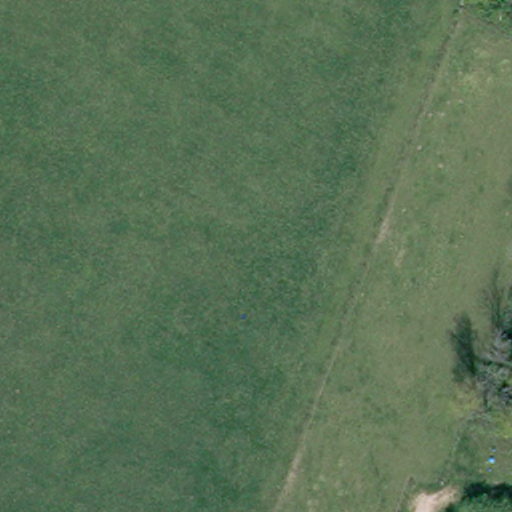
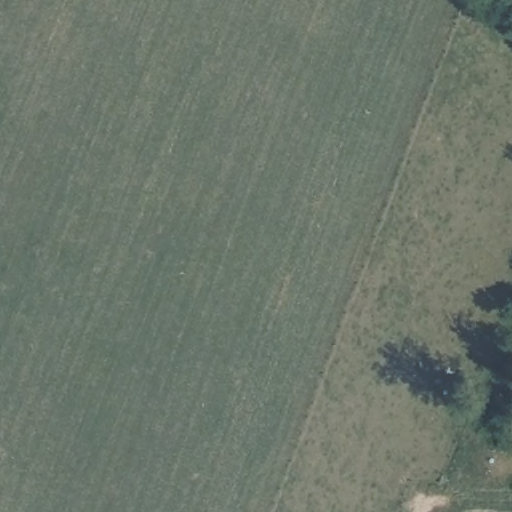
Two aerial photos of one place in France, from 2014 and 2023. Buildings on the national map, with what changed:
unchanged [(502,481),(496,481),(490,479),(485,475),(481,471),(478,465),(477,459),(477,453),(480,447),(483,442),(488,438),(494,435),(500,434),(507,435),(512,437),(512,478),(508,480),(502,481)]

